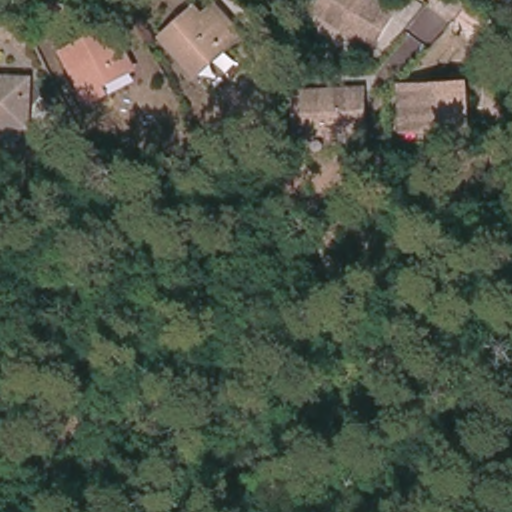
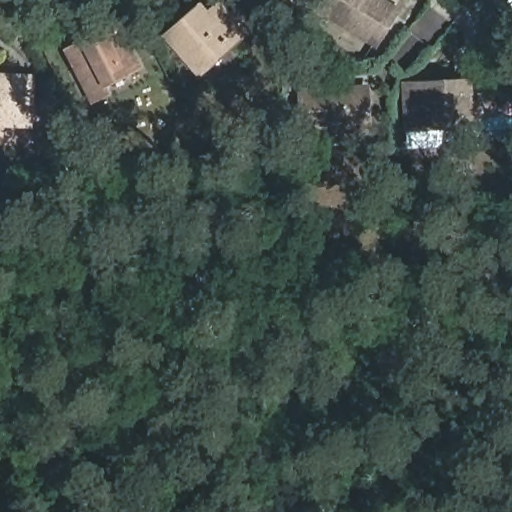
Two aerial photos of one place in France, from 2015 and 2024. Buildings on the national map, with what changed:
unchanged [(382,0),(394,7),(374,40),(322,8),(327,0),(382,0)]
unchanged [(196,73),(161,43),(189,12),(197,19),(210,4),(223,15),(219,20),(234,33),(222,45),(212,56),(196,73)]
unchanged [(134,69),(104,84),(106,91),(89,99),(65,52),(84,44),(99,37),(114,30),(134,69)]
unchanged [(29,121),(0,119),(0,77),(32,80),(29,121)]
unchanged [(407,89),(468,89),(468,128),(407,128),(407,89)]
unchanged [(323,91),(384,91),(384,129),(324,130),(323,91)]

